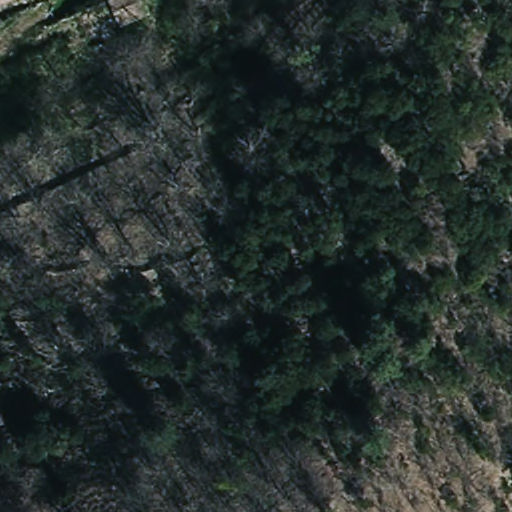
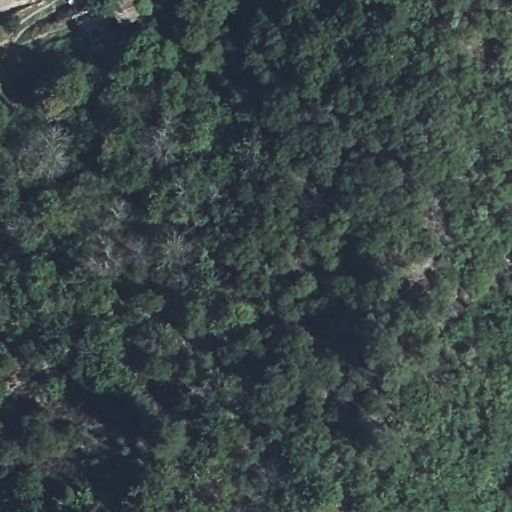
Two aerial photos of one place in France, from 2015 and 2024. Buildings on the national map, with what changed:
unchanged [(0,0),(25,0),(0,10),(0,0)]
unchanged [(152,36),(126,45),(118,47),(110,24),(143,11),(152,36)]

